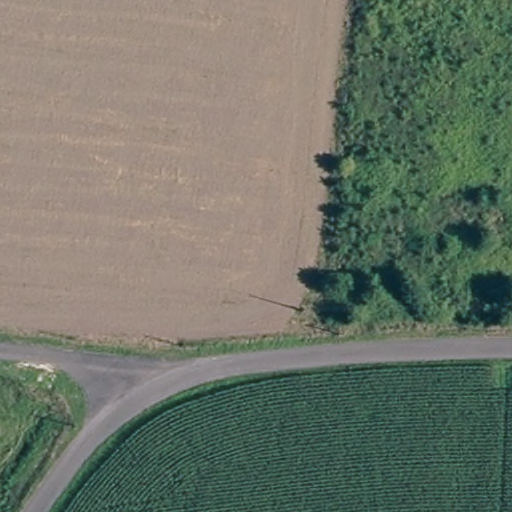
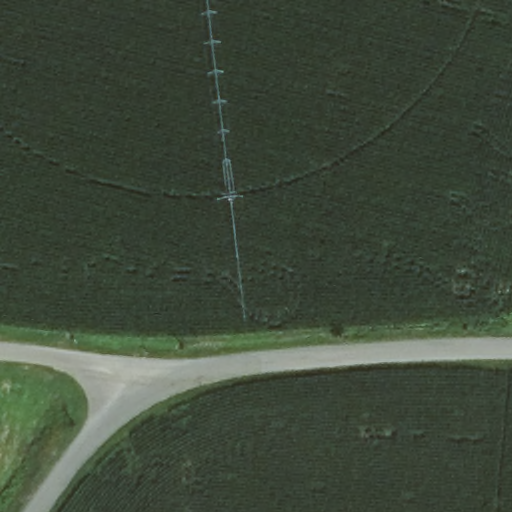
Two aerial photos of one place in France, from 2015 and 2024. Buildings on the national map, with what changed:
[]

